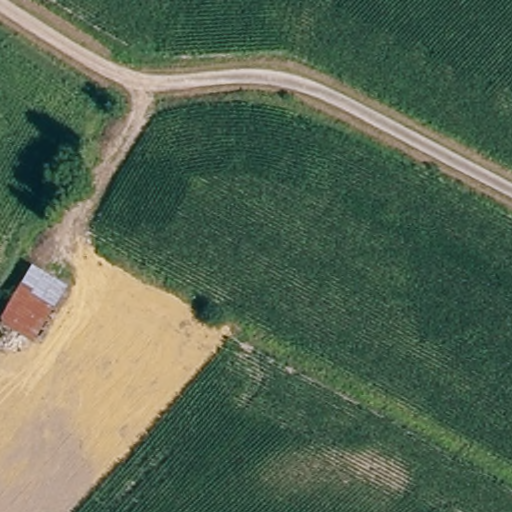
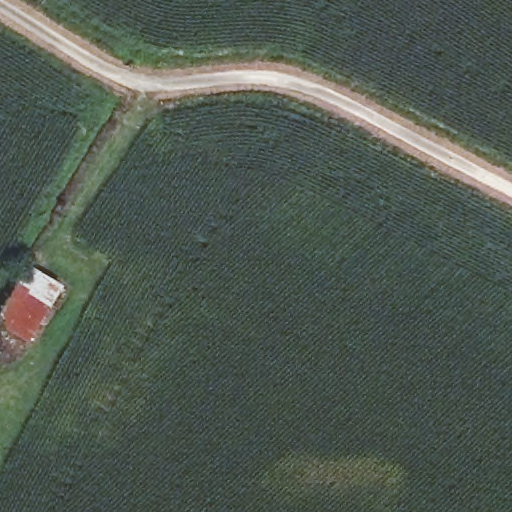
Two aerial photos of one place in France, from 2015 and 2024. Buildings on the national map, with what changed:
unchanged [(0,359),(0,323),(36,265),(69,285),(20,373),(0,359)]

